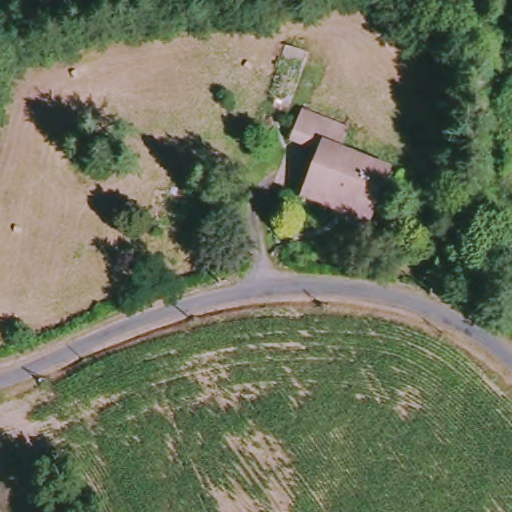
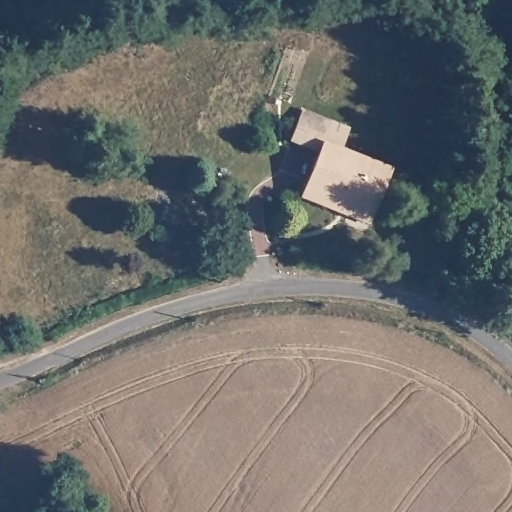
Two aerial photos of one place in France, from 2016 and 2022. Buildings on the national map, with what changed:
unchanged [(354,130),(352,150),(397,169),(376,224),(305,195),(322,152),(291,143),(308,110),(354,130)]

